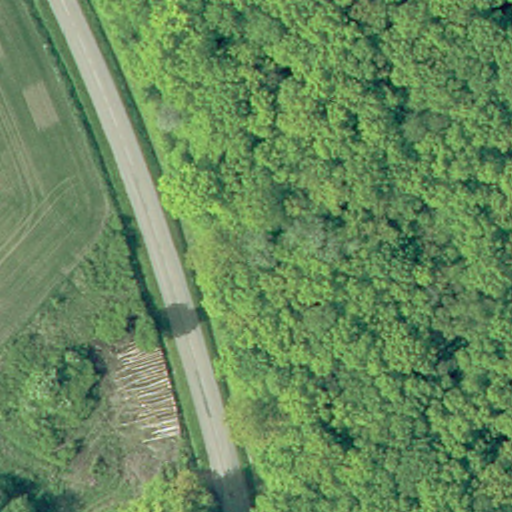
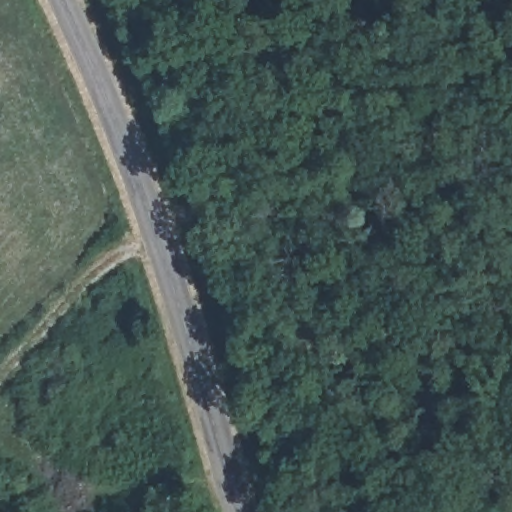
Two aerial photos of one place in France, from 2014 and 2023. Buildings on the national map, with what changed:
[]

